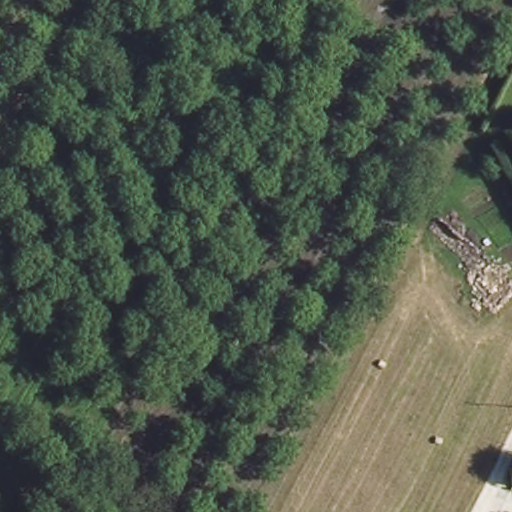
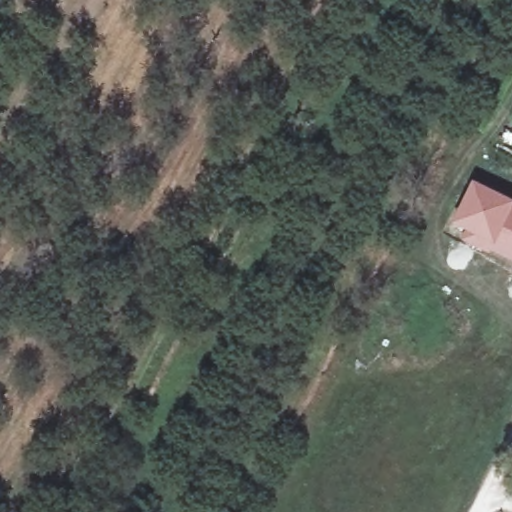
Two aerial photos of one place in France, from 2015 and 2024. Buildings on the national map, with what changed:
new [(512,201),(512,265),(457,239),(460,231),(447,225),(470,180),(512,201)]

